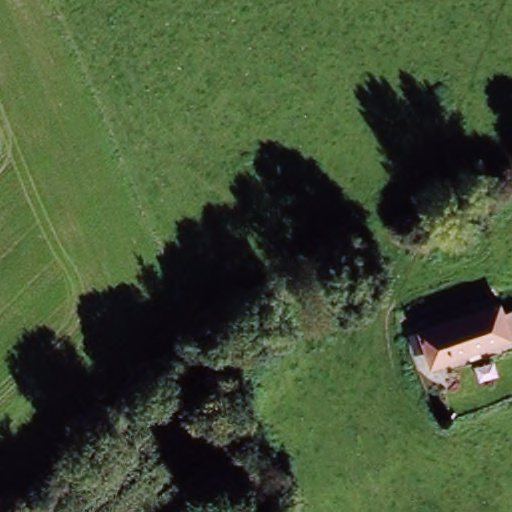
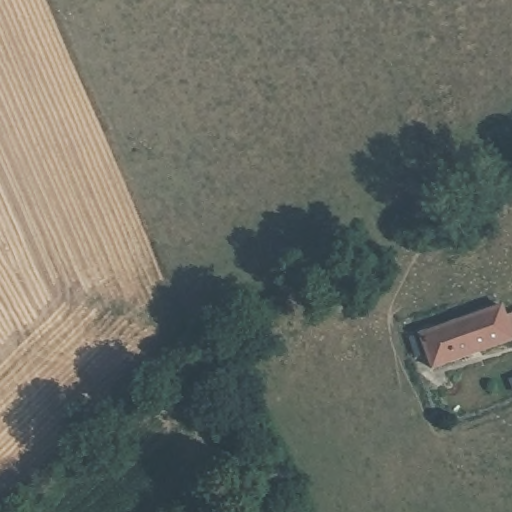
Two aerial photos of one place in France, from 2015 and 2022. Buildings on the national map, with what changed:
unchanged [(419,328),(502,299),(512,297),(512,332),(433,361),(419,328)]

